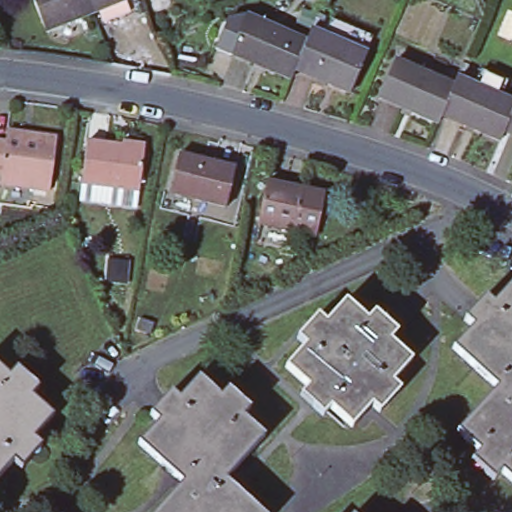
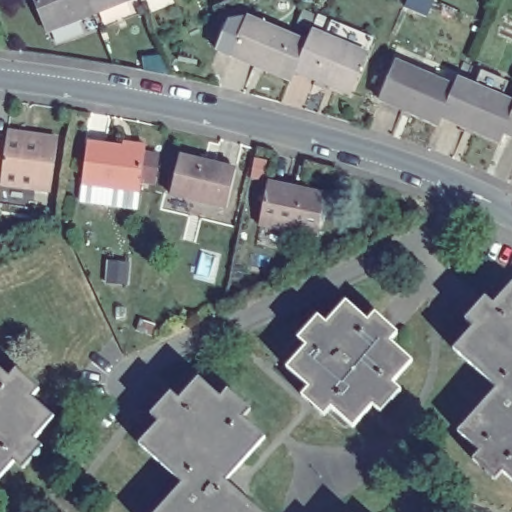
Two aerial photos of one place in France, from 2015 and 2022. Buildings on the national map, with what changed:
unchanged [(48,33),(36,0),(89,0),(95,15),(48,33)]
unchanged [(89,0),(134,0),(95,15),(89,0)]
unchanged [(143,0),(146,0),(143,1),(143,0)]
unchanged [(219,47),(230,18),(250,14),(308,36),(296,66),(292,75),(235,53),(219,47)]
unchanged [(308,36),(313,25),(369,47),(353,88),(296,66),(308,36)]
unchanged [(382,104),(397,68),(456,92),(443,122),(441,129),(382,104)]
unchanged [(456,92),(459,84),(512,106),(512,118),(500,145),(443,122),(456,92)]
unchanged [(507,138),(512,126),(512,140),(507,138)]
unchanged [(52,192),(2,185),(3,175),(0,174),(0,144),(6,145),(8,134),(11,134),(10,140),(30,143),(31,136),(60,140),(52,192)]
unchanged [(126,148),(125,151),(147,155),(141,194),(83,185),(90,143),(126,148)]
unchanged [(218,167),(217,172),(236,176),(229,210),(173,197),(182,159),(218,167)]
unchanged [(327,196),(320,237),(261,227),(269,186),(327,196)]
unchanged [(505,468),(498,475),(476,455),(483,448),(460,427),(498,384),(456,346),(476,324),(468,317),(488,295),(495,302),(512,283),(512,473),(505,468)]
unchanged [(370,320),(378,311),(400,333),(393,340),(415,361),(397,380),(405,388),(384,410),(377,403),(356,425),(335,405),(327,412),(305,391),(311,385),(291,365),(310,345),(301,337),(325,313),(331,320),(350,301),(370,320)]
unchanged [(23,368),(44,387),(37,395),(58,413),(38,437),(47,445),(27,467),(17,459),(0,479),(0,361),(16,376),(23,368)]
unchanged [(229,392),(251,413),(245,420),(268,442),(230,484),(261,512),(160,512),(185,485),(142,445),(161,424),(152,417),(174,394),(181,401),(200,380),(222,400),(229,392)]

